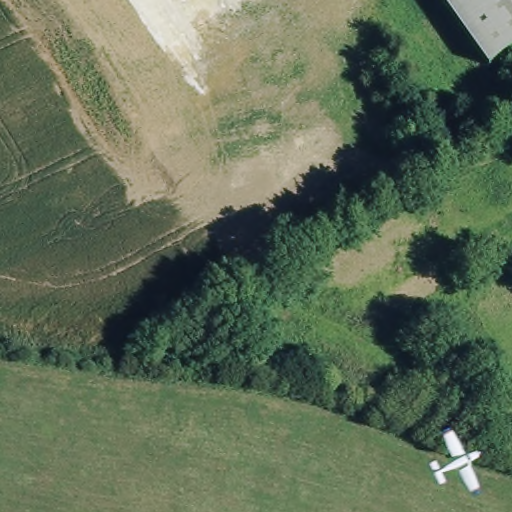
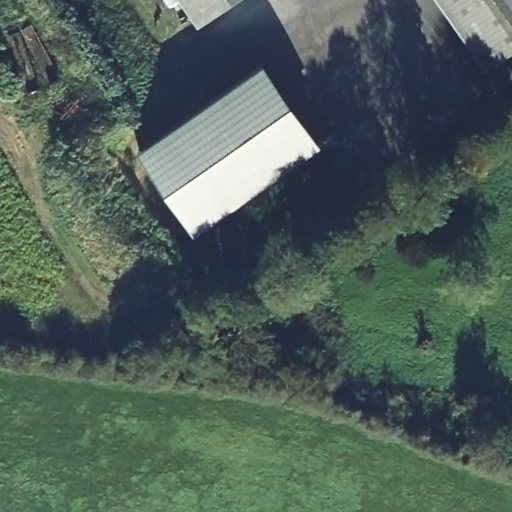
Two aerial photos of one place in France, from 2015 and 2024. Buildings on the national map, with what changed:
new [(184,0),(233,0),(200,23),(184,0)]
unchanged [(444,0),(512,0),(512,49),(489,65),(444,0)]
new [(267,61),(325,144),(197,234),(139,152),(267,61)]

